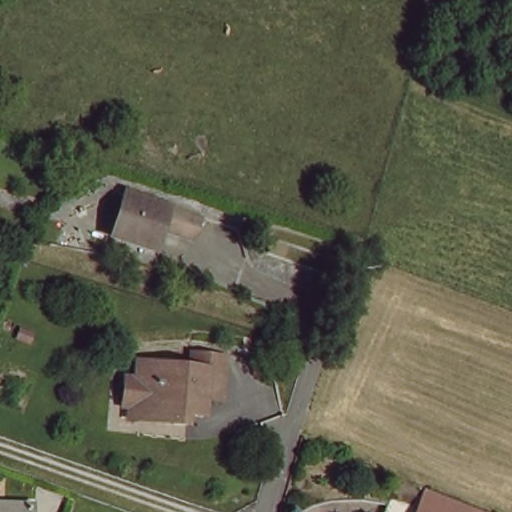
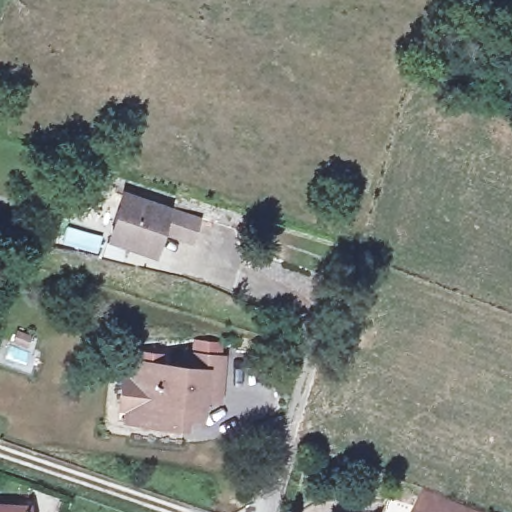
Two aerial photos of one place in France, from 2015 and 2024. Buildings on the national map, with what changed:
unchanged [(194,216),(184,236),(155,224),(143,250),(107,235),(125,189),(194,216)]
unchanged [(216,352),(212,396),(200,395),(200,404),(168,402),(167,409),(175,409),(174,423),(147,421),(147,411),(116,410),(118,380),(131,380),(133,355),(182,359),(184,350),(216,352)]
unchanged [(456,512),(408,512),(415,494),(456,512)]
unchanged [(29,512),(0,512),(0,503),(29,503),(29,512)]

